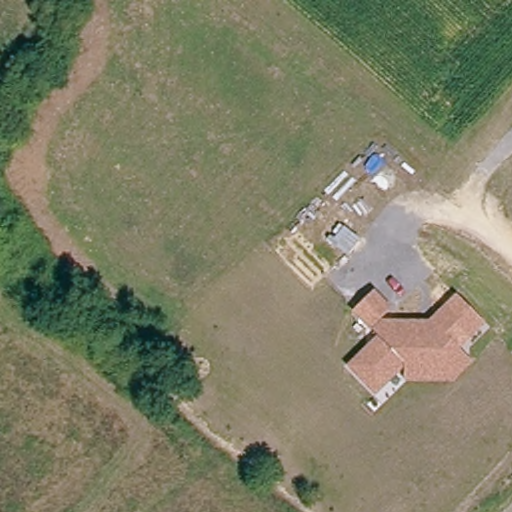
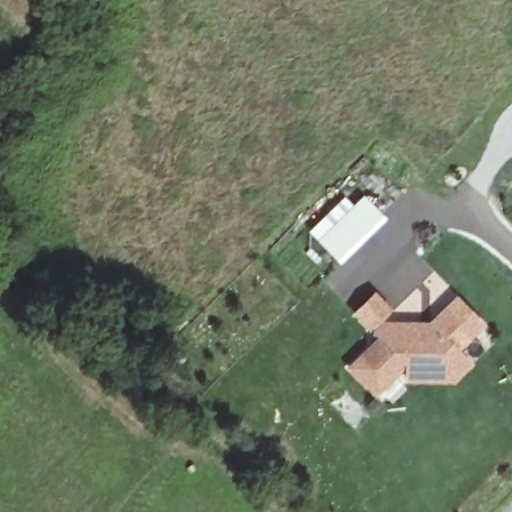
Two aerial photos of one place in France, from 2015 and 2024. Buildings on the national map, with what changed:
new [(342,198),(352,207),(362,197),(379,214),(338,257),(310,231),(342,198)]
unchanged [(373,296),(387,311),(369,328),(356,314),(373,296)]
unchanged [(452,380),(404,380),(404,365),(374,394),(350,368),(380,340),(373,332),(380,325),(428,327),(454,300),(479,324),(453,352),(466,365),(452,380)]

